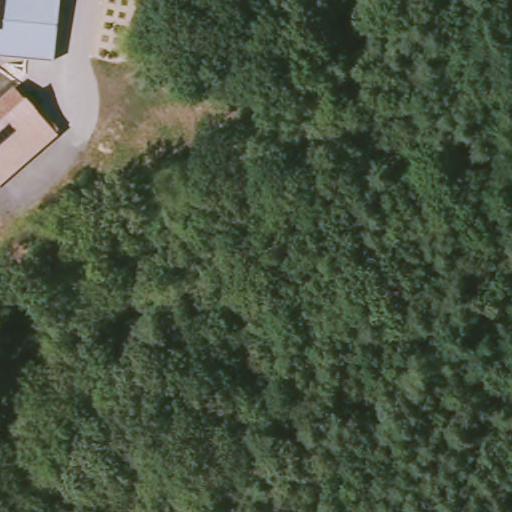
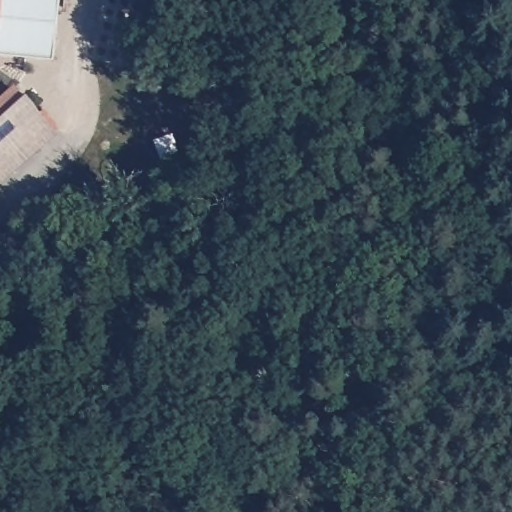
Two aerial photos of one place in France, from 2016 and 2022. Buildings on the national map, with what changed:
unchanged [(28,0),(28,2),(26,31),(3,30),(0,29),(0,0),(28,0)]
unchanged [(16,85),(45,111),(35,120),(50,140),(0,190),(0,98),(16,85)]

